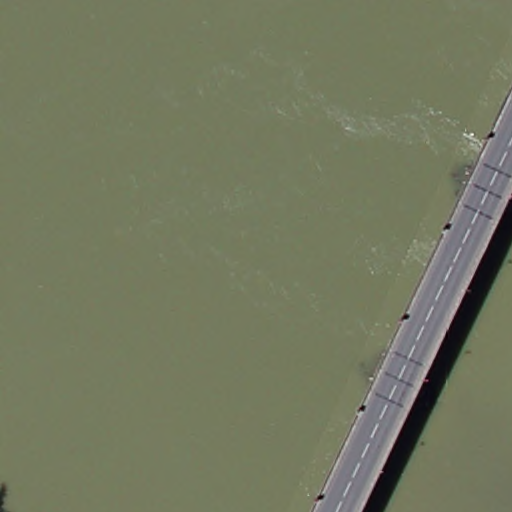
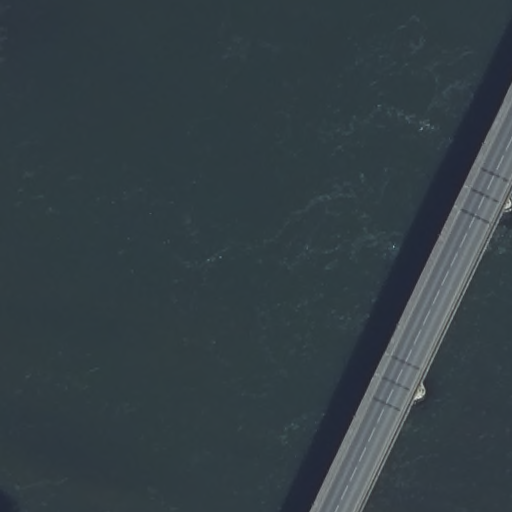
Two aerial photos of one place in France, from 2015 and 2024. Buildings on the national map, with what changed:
[]

